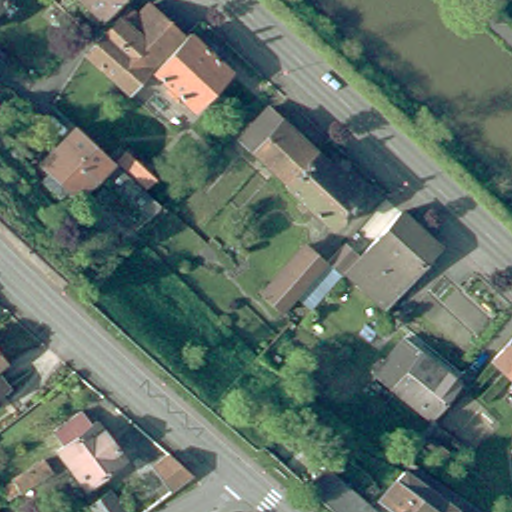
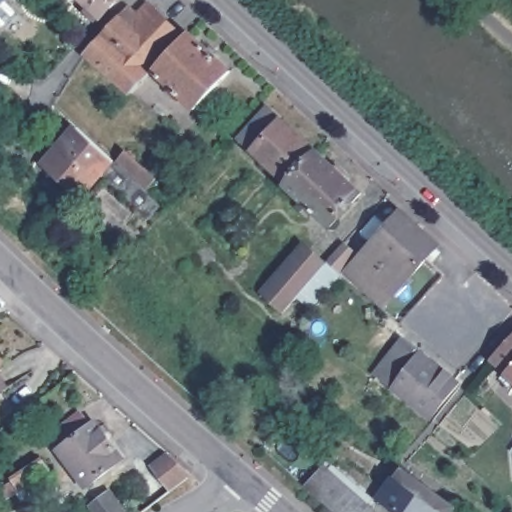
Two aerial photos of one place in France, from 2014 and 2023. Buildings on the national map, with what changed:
unchanged [(0,21),(0,0),(15,0),(18,4),(0,21)]
unchanged [(83,0),(122,0),(103,19),(83,0)]
unchanged [(186,41),(133,99),(90,58),(131,14),(139,20),(150,9),(186,41)]
unchanged [(233,75),(196,115),(155,77),(193,38),(233,75)]
unchanged [(370,200),(338,235),(292,194),(294,191),(245,149),(275,118),(370,200)]
unchanged [(163,207),(150,220),(102,175),(81,198),(44,163),(78,127),(163,207)]
unchanged [(117,161),(127,151),(157,179),(147,190),(117,161)]
unchanged [(441,245),(387,306),(348,272),(403,211),(441,245)]
unchanged [(299,298),(285,315),(261,293),(306,244),(330,263),(299,298)]
unchanged [(323,291),(326,295),(312,310),(299,298),(330,263),(347,244),(357,253),(323,291)]
unchanged [(378,330),(370,338),(361,330),(370,321),(378,330)]
unchanged [(458,382),(430,417),(378,376),(405,342),(458,382)]
unchanged [(494,366),(512,345),(512,383),(494,366)]
unchanged [(0,370),(13,385),(0,396),(0,349),(10,361),(0,370)]
unchanged [(77,481),(70,472),(75,468),(65,455),(62,456),(51,442),(86,415),(97,428),(101,425),(131,465),(94,493),(82,477),(77,481)]
unchanged [(153,465),(170,452),(193,473),(177,485),(153,465)]
unchanged [(53,471),(10,500),(3,489),(15,480),(45,460),(53,471)]
unchanged [(310,491),(300,482),(320,460),(330,468),(358,495),(378,512),(333,512),(310,491)]
unchanged [(452,504),(446,512),(399,512),(376,495),(399,466),(452,504)]
unchanged [(89,508),(111,492),(126,512),(92,512),(89,508)]

